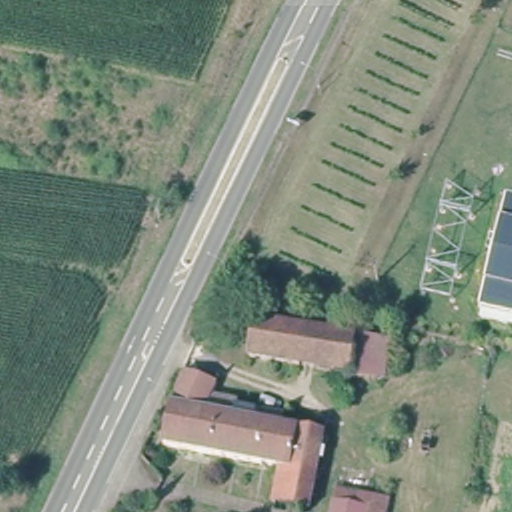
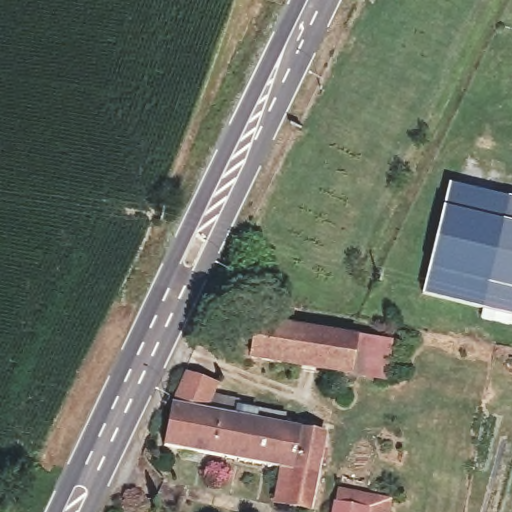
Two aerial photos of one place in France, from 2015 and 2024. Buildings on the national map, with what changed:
new [(423,295),(429,270),(443,209),(449,186),(509,201),(483,309),(423,295)]
unchanged [(509,201),(512,202),(512,316),(483,309),(509,201)]
unchanged [(358,368),(261,352),(266,317),(365,335),(358,368)]
unchanged [(401,341),(395,373),(358,368),(365,335),(401,341)]
unchanged [(205,407),(238,414),(240,407),(256,409),(255,417),(324,431),(310,507),(275,500),(282,464),(162,442),(172,399),(186,368),(217,382),(205,407)]
unchanged [(382,493),(389,497),(387,512),(332,512),(337,487),(370,492),(374,467),(386,468),(382,493)]

